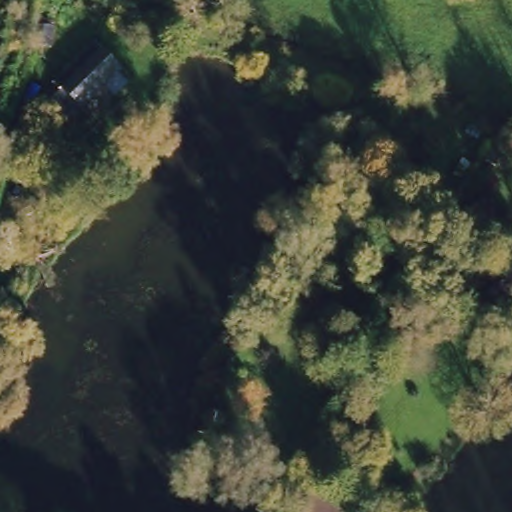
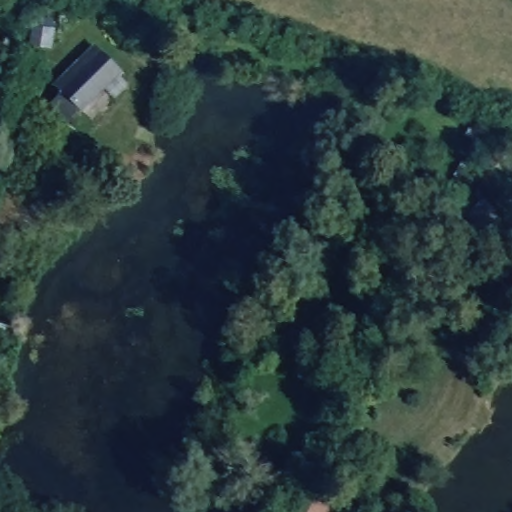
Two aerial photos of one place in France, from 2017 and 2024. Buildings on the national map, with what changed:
unchanged [(92,36),(116,60),(66,109),(49,91),(61,79),(54,72),(92,36)]
unchanged [(493,141),(502,146),(494,161),(485,156),(493,141)]
unchanged [(482,195),(499,211),(471,240),(454,225),(482,195)]

